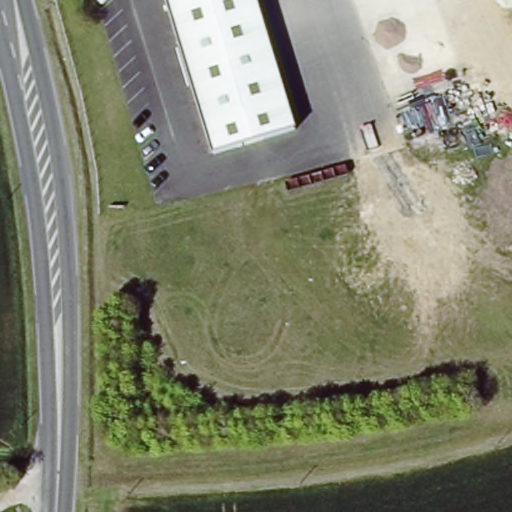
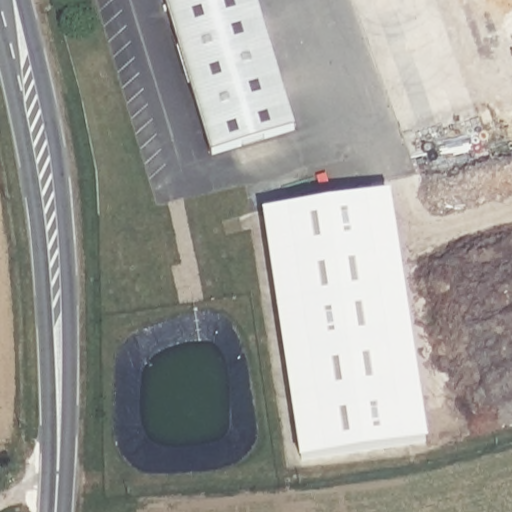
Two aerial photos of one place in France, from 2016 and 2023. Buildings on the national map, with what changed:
unchanged [(287,130),(198,152),(166,0),(253,0),(287,130)]
new [(430,443),(303,463),(265,214),(393,195),(430,443)]

